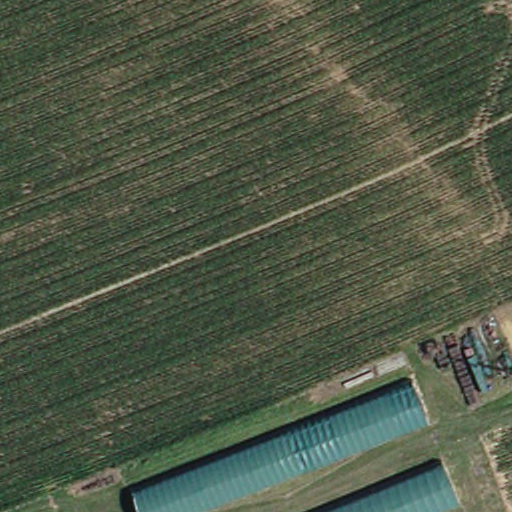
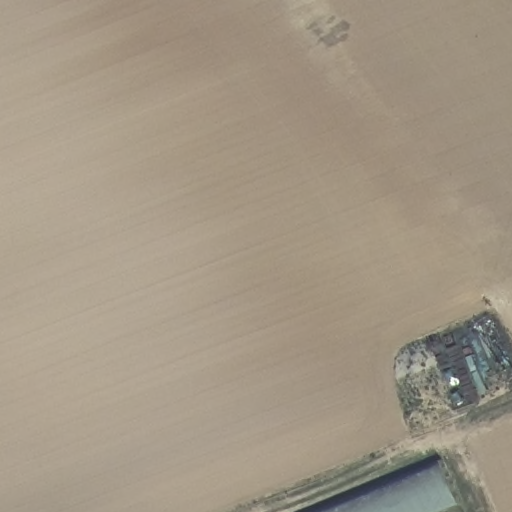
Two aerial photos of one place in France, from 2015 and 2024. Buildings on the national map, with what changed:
demolished [(406,382),(421,420),(198,512),(138,512),(127,490),(406,382)]
unchanged [(441,462),(459,505),(442,512),(321,512),(441,462)]

